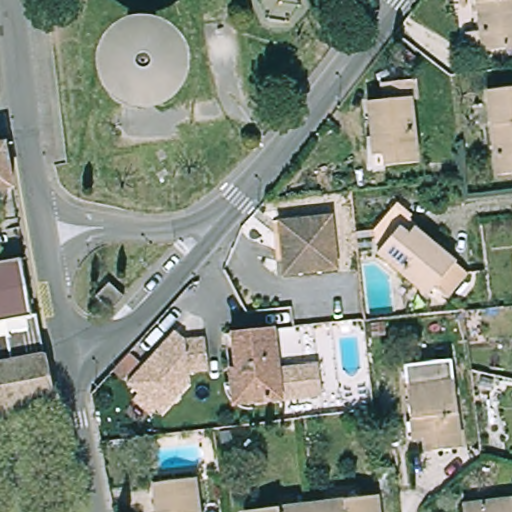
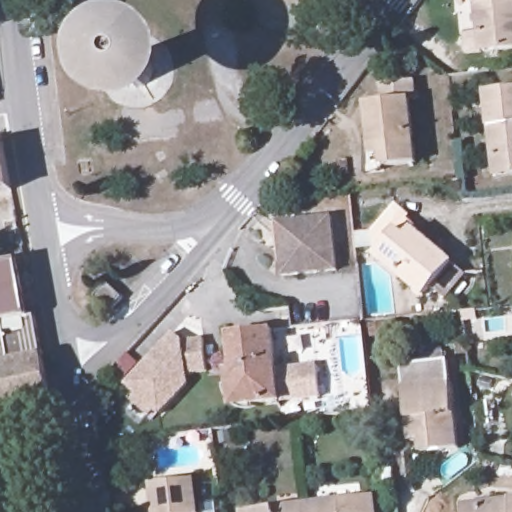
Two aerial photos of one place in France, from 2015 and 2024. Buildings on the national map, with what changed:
unchanged [(477,0),(512,0),(512,48),(482,50),(477,0)]
unchanged [(372,159),(367,108),(383,106),(382,89),(415,86),(415,104),(409,104),(415,167),(383,170),(373,171),(372,159)]
unchanged [(485,89),(512,87),(512,172),(494,174),(485,89)]
unchanged [(8,189),(0,190),(0,152),(8,189)]
unchanged [(374,239),(393,214),(406,225),(404,229),(452,269),(427,302),(375,263),(374,239)]
unchanged [(337,221),(340,274),(285,279),(282,225),(337,221)]
unchanged [(25,306),(1,312),(2,322),(0,322),(0,263),(16,260),(25,306)]
unchanged [(22,329),(20,319),(32,317),(39,354),(0,362),(0,333),(22,329)]
unchanged [(270,328),(274,368),(315,364),(318,395),(237,404),(231,401),(228,393),(227,382),(232,381),(228,332),(270,328)]
unchanged [(193,374),(190,378),(192,383),(162,415),(155,412),(150,416),(141,427),(126,414),(134,404),(131,402),(136,395),(113,373),(129,354),(142,366),(174,333),(184,340),(206,338),(209,372),(193,374)]
unchanged [(39,354),(48,404),(0,413),(0,362),(39,354)]
unchanged [(447,379),(455,445),(419,449),(418,438),(408,439),(402,384),(447,379)]
unchanged [(151,486),(193,481),(197,512),(154,512),(151,486)]
unchanged [(374,500),(375,512),(310,512),(310,508),(374,500)]
unchanged [(462,509),(512,504),(512,512),(463,512),(462,509)]
unchanged [(310,512),(278,512),(310,508),(310,512)]

